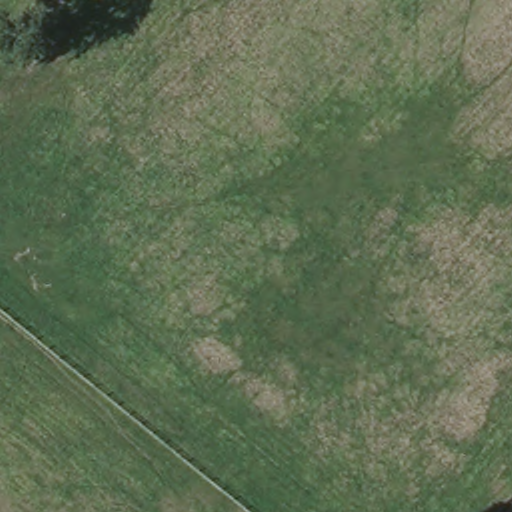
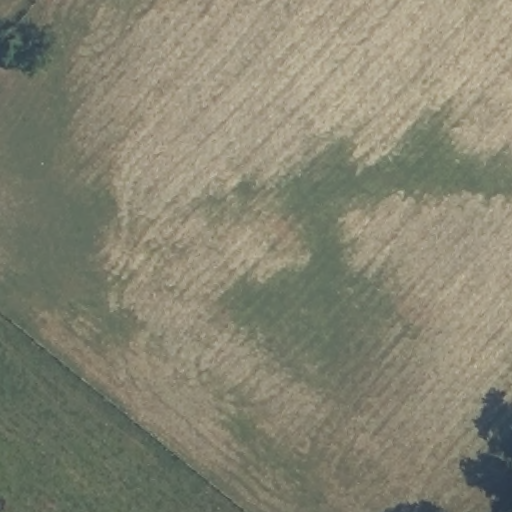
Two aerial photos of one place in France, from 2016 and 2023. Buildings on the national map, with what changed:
[]

